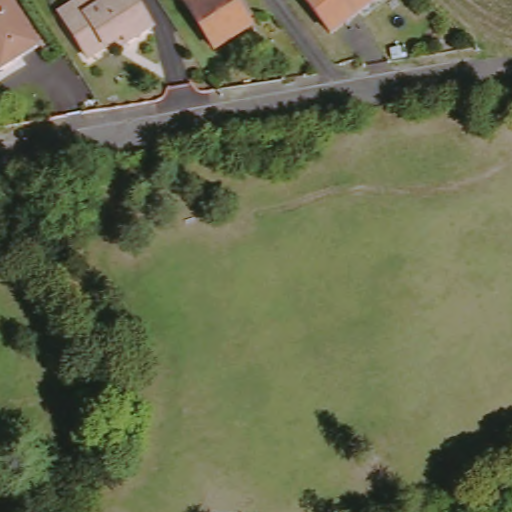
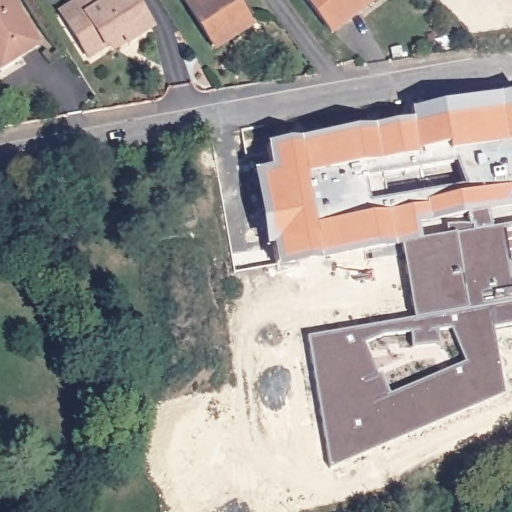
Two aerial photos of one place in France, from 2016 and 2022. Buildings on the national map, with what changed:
unchanged [(7,80),(0,69),(0,0),(12,0),(47,56),(7,80)]
unchanged [(115,43),(92,57),(73,26),(65,13),(87,0),(102,0),(105,6),(115,0),(139,0),(158,29),(132,45),(120,52),(115,43)]
unchanged [(259,26),(222,49),(190,0),(242,0),(259,26)]
unchanged [(333,35),(307,0),(380,0),(333,35)]
new [(307,334),(415,315),(402,240),(279,266),(275,240),(266,241),(255,163),(275,160),(269,138),(414,116),(414,103),(512,86),(512,323),(495,327),(507,390),(332,468),(307,334)]

